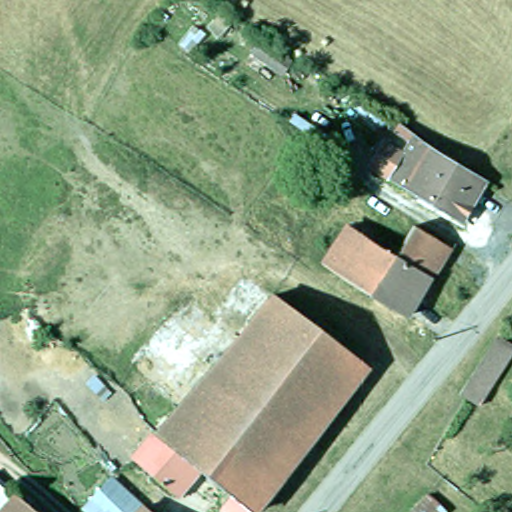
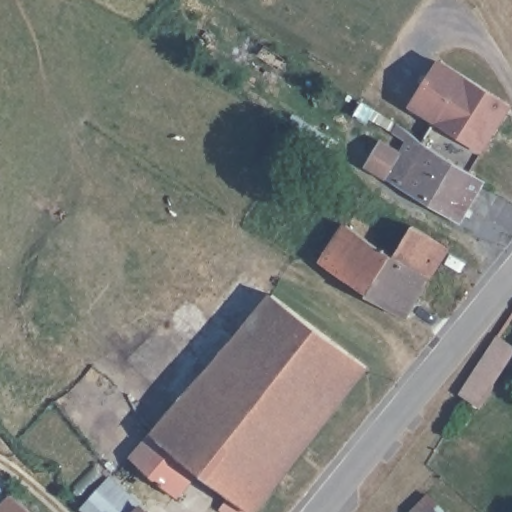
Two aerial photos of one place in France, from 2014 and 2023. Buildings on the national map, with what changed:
new [(512,104),(512,107),(482,154),(408,106),(440,59),(512,104)]
unchanged [(376,170),(390,148),(420,166),(432,147),(482,180),(488,184),(465,229),(405,191),(406,189),(376,170)]
unchanged [(447,251),(405,322),(346,287),(323,270),(348,231),(395,261),(413,231),(447,251)]
unchanged [(226,496),(193,470),(174,495),(168,495),(127,460),(148,435),(269,295),(285,307),(360,363),(363,366),(248,512),(225,512),(217,506),(226,496)]
unchanged [(465,399),(460,395),(475,372),(499,335),(512,344),(512,355),(493,384),(478,407),(465,399)]
unchanged [(111,480),(142,508),(138,512),(88,512),(84,507),(111,480)]
unchanged [(0,503),(0,485),(8,494),(0,503)]
unchanged [(445,512),(412,512),(412,511),(427,495),(445,512)]
unchanged [(0,512),(0,510),(12,496),(31,512),(0,512)]
unchanged [(138,512),(142,508),(145,512),(138,512)]

